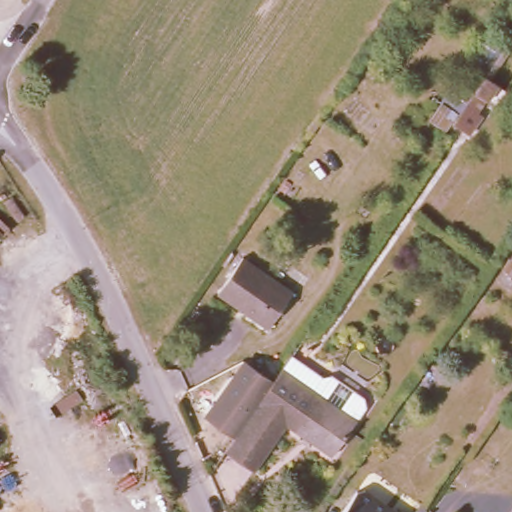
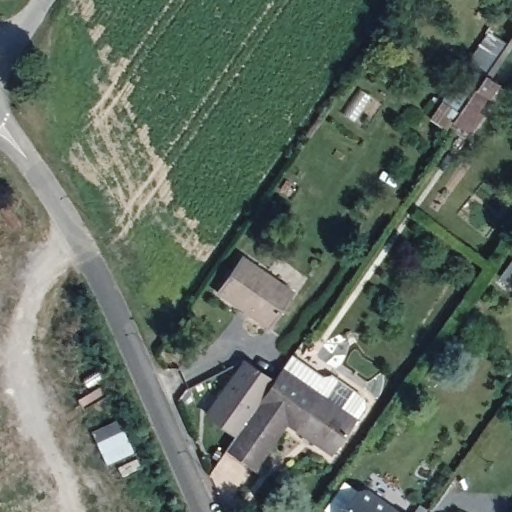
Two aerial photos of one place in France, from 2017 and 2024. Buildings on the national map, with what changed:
unchanged [(512,34),(512,39),(510,37),(512,34)]
unchanged [(500,101),(490,97),(468,133),(451,121),(446,128),(430,119),(463,60),(482,76),(486,71),(507,89),(500,101)]
unchanged [(291,291),(264,326),(217,292),(243,254),(291,291)]
unchanged [(236,438),(203,416),(243,360),(276,382),(236,438)]
unchanged [(313,392),(357,424),(335,457),(287,423),(256,468),(228,449),(284,371),(313,392)]
unchanged [(372,403),(357,424),(313,392),(329,372),(372,403)]
unchanged [(355,485),(390,511),(395,511),(396,512),(330,512),(347,487),(355,485)]
unchanged [(512,512),(508,512),(512,506),(512,512)]

